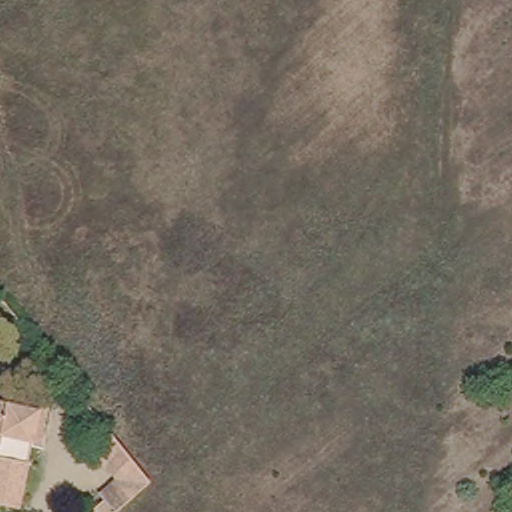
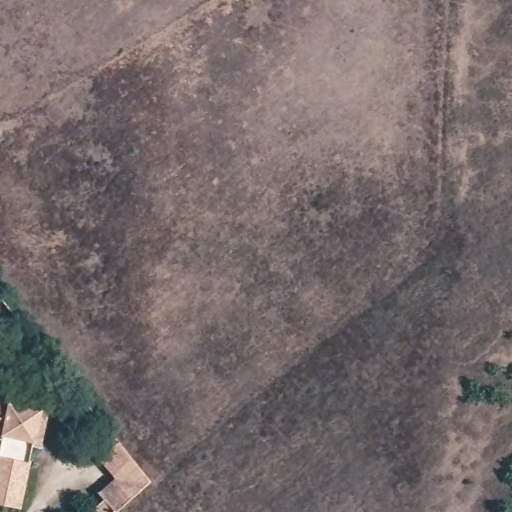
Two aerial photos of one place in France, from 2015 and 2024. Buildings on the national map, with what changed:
unchanged [(0,507),(0,395),(45,403),(20,512),(0,507)]
unchanged [(93,414),(148,484),(112,512),(89,512),(85,508),(100,497),(91,486),(105,474),(73,436),(93,414)]

